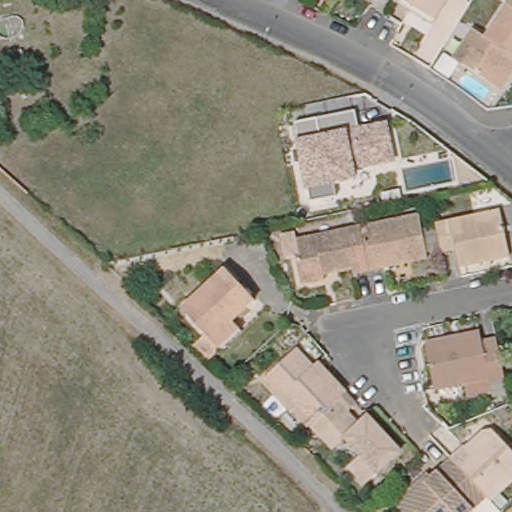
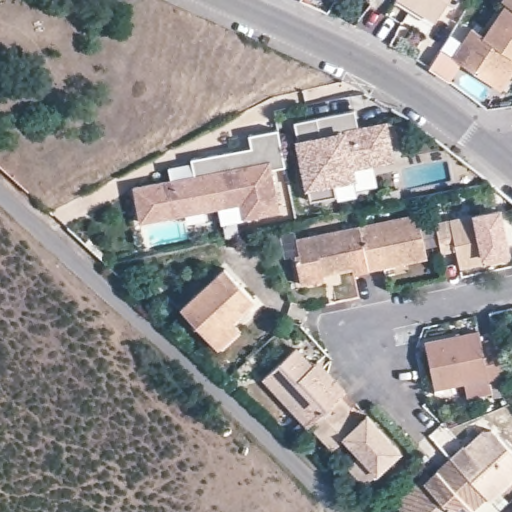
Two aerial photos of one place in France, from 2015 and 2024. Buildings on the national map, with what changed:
unchanged [(396,0),(447,0),(432,22),(396,0)]
unchanged [(494,81),(460,59),(468,45),(469,45),(462,40),(470,26),(481,32),(503,0),(507,0),(512,0),(512,64),(499,85),(498,85),(494,81)]
unchanged [(453,54),(452,54),(461,40),(462,40),(469,45),(460,59),(453,54)]
unchanged [(395,162),(355,170),(356,180),(333,185),(335,196),(310,200),(308,190),(304,190),(293,123),(355,110),(358,126),(387,121),(395,162)]
new [(285,166),(271,170),(280,211),(242,220),(240,204),(139,224),(132,186),(192,175),(190,159),(250,147),(248,135),(277,129),(285,166)]
unchanged [(511,252),(504,254),(455,263),(451,245),(436,249),(430,220),(493,207),(498,227),(506,225),(511,252)]
unchanged [(408,212),(417,255),(359,267),(350,224),(408,212)]
unchanged [(314,276),(292,280),(286,252),(290,250),(287,236),(350,224),(359,267),(345,270),(344,266),(328,269),(313,271),(314,276)]
unchanged [(238,325),(218,345),(218,344),(211,336),(181,306),(225,264),(253,295),(246,302),(245,303),(242,305),(240,308),(237,310),(235,312),(233,315),(231,316),(235,322),(238,325)]
unchanged [(430,386),(420,339),(470,327),(472,336),(490,333),(498,376),(480,380),(481,391),(464,395),(460,380),(446,383),(430,386)]
unchanged [(339,394),(310,421),(265,373),(296,343),(312,360),(317,356),(335,375),(346,387),(339,394)]
unchanged [(350,406),(348,408),(358,420),(368,410),(401,447),(365,481),(348,462),(359,451),(344,435),(332,445),(321,434),(310,421),(339,394),(350,406)]
unchanged [(464,443),(486,421),(512,449),(512,472),(488,495),(485,491),(450,454),(462,441),(464,443)]
unchanged [(485,491),(464,512),(421,512),(417,507),(412,512),(405,512),(394,500),(421,474),(425,477),(450,454),(485,491)]

